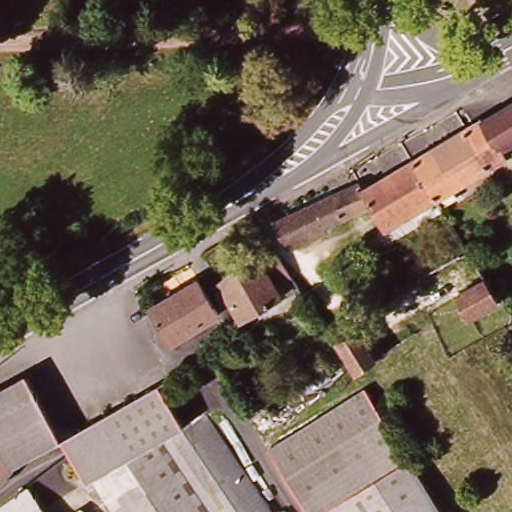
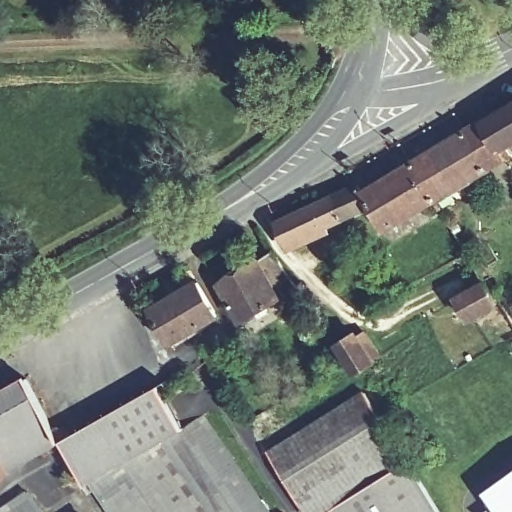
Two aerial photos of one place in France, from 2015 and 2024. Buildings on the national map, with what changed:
unchanged [(505,167),(483,128),(512,111),(512,162),(505,167)]
unchanged [(451,199),(427,161),(483,128),(505,167),(451,199)]
unchanged [(292,220),(351,195),(375,185),(378,190),(427,161),(451,199),(402,228),(387,204),(360,216),(302,242),(292,220)]
unchanged [(296,282),(282,290),(286,300),(249,322),(227,286),(278,255),(296,282)]
unchanged [(214,280),(235,314),(188,342),(187,342),(165,308),(214,280)]
unchanged [(487,287),(501,308),(470,324),(457,303),(487,287)]
unchanged [(301,311),(295,302),(304,296),(310,306),(301,311)]
unchanged [(382,351),(357,367),(338,339),(358,328),(368,342),(375,339),(382,351)]
unchanged [(18,386),(39,375),(66,423),(71,421),(78,423),(50,438),(18,386)]
unchanged [(103,488),(73,447),(60,455),(50,438),(78,423),(90,428),(171,382),(194,423),(196,422),(214,411),(285,512),(122,512),(105,487),(103,488)]
unchanged [(50,438),(60,455),(0,487),(0,396),(18,386),(50,438)]
unchanged [(315,512),(278,456),(314,432),(375,392),(409,446),(406,448),(409,452),(416,463),(419,461),(452,512),(365,512),(364,511),(362,512),(315,512)]
new [(497,512),(483,492),(512,472),(512,512),(497,512)]
unchanged [(54,512),(2,512),(38,487),(54,512)]
unchanged [(365,512),(362,512),(364,511),(365,512)]

